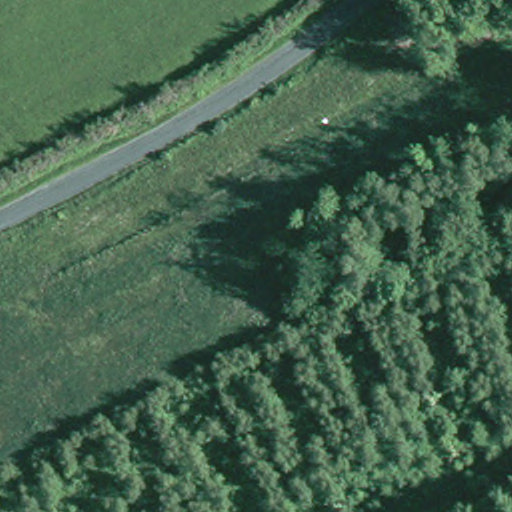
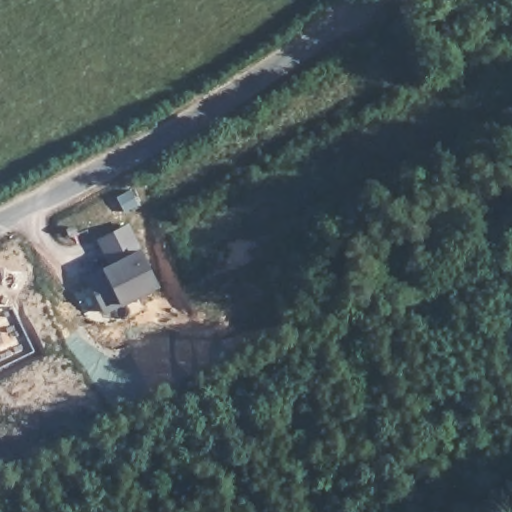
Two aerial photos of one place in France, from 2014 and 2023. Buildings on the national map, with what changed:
new [(160,287),(106,313),(88,276),(100,270),(106,274),(115,268),(100,237),(127,223),(160,287)]

